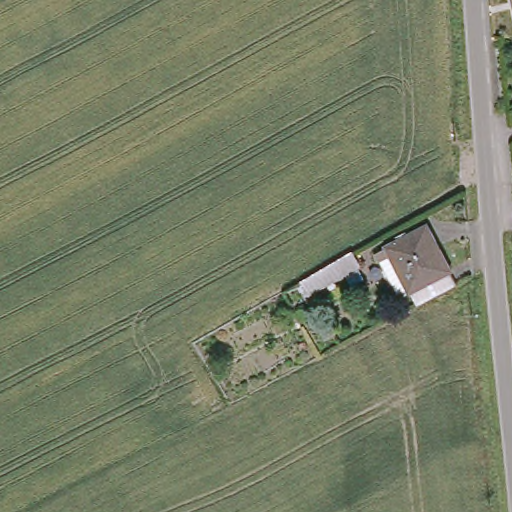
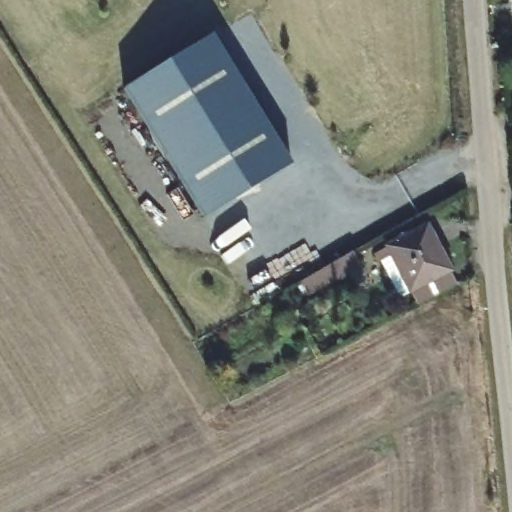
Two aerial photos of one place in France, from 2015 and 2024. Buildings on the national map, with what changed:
new [(210,34),(292,165),(204,219),(123,88),(210,34)]
unchanged [(423,300),(415,286),(406,291),(387,255),(385,256),(380,249),(432,222),(462,279),(423,300)]
unchanged [(357,252),(365,266),(313,295),(305,282),(357,252)]

